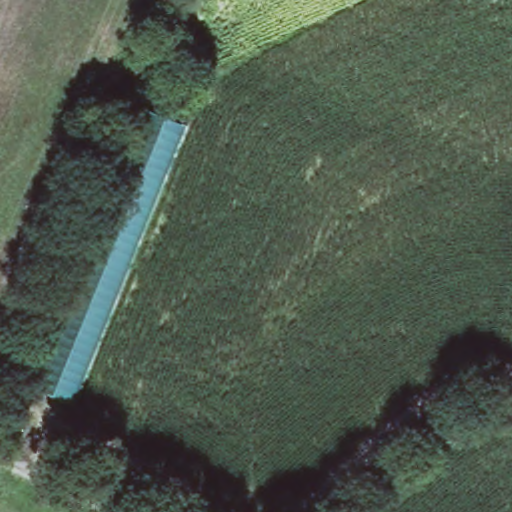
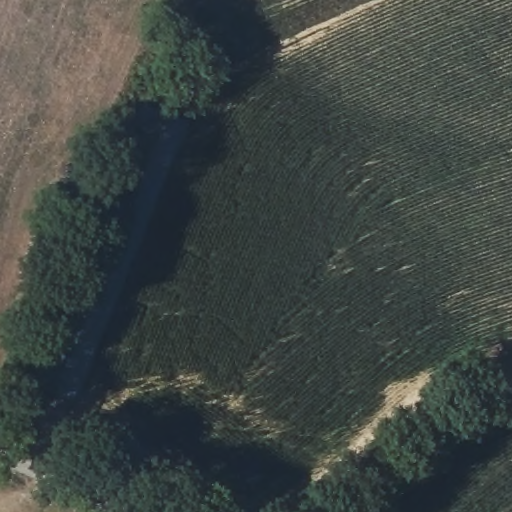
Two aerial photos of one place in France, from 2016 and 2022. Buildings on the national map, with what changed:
unchanged [(185,123),(74,404),(28,388),(142,109),(185,123)]

